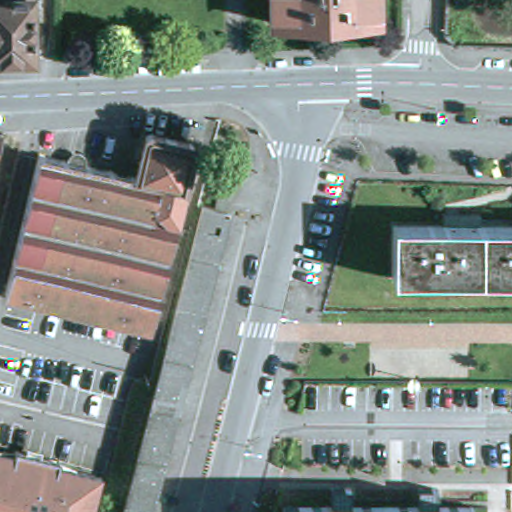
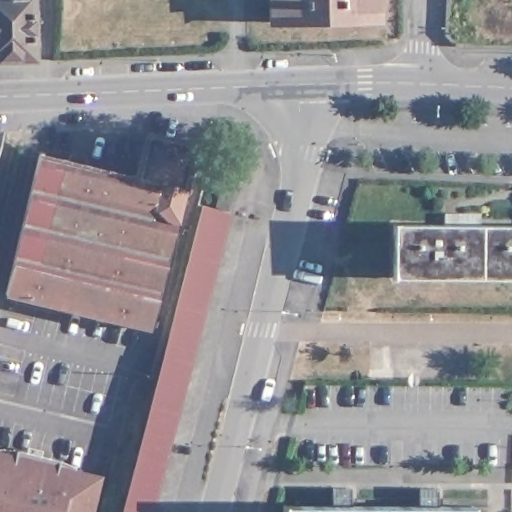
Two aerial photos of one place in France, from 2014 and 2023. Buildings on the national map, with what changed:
unchanged [(34,0),(35,26),(37,62),(0,62),(0,0),(34,0)]
unchanged [(272,30),(272,0),(379,0),(380,27),(272,30)]
unchanged [(7,131),(0,155),(0,131),(7,131)]
unchanged [(199,148),(155,331),(153,331),(151,339),(104,328),(106,319),(9,297),(43,156),(140,177),(149,137),(199,148)]
unchanged [(240,157),(240,182),(218,182),(217,159),(240,157)]
unchanged [(235,209),(178,423),(154,512),(123,512),(169,346),(205,212),(208,202),(235,209)]
unchanged [(443,279),(403,278),(405,227),(458,227),(443,279)]
unchanged [(472,286),(450,285),(451,280),(443,279),(458,227),(512,228),(512,280),(472,280),(472,286)]
unchanged [(16,457),(18,452),(61,461),(60,467),(103,476),(93,512),(0,512),(0,453),(16,457)]
unchanged [(478,507),(478,512),(288,512),(288,507),(478,507)]

